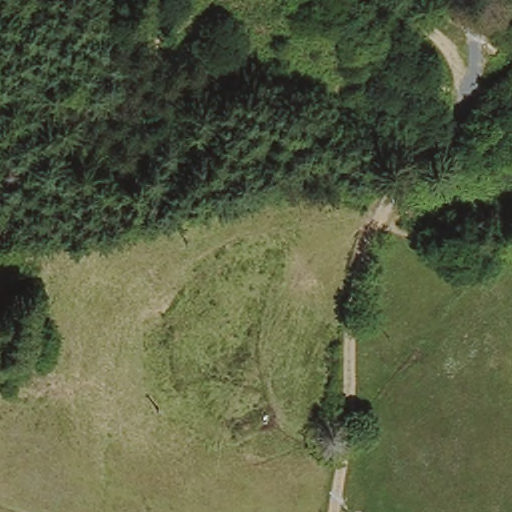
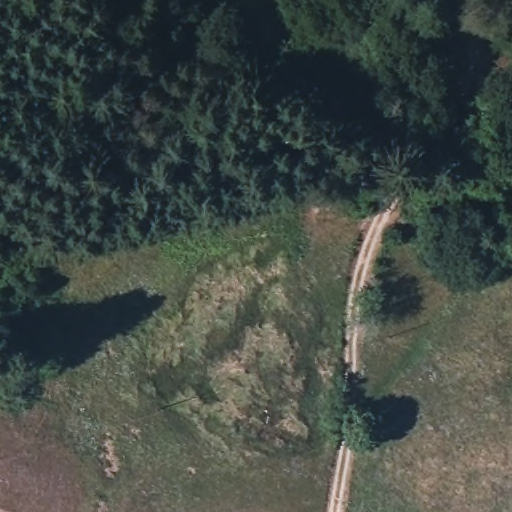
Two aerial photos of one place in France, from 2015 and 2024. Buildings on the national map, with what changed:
[]

